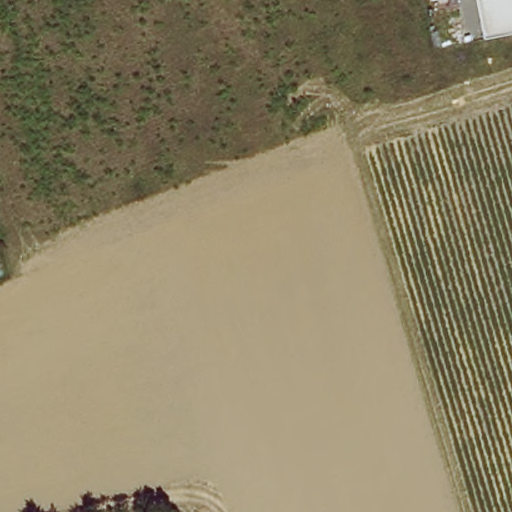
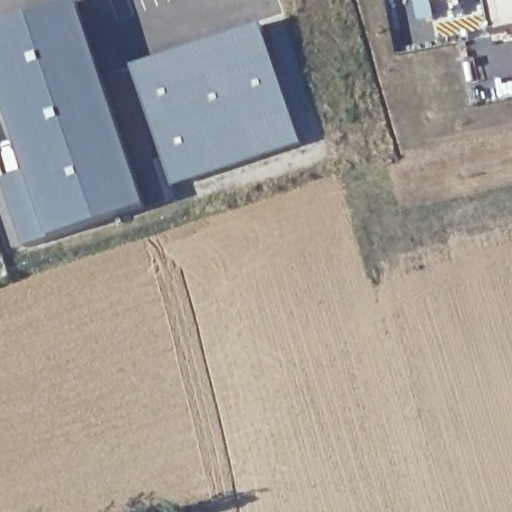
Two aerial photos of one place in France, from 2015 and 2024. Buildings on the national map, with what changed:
unchanged [(492,41),(484,0),(512,0),(512,38),(492,41)]
new [(27,250),(3,182),(27,171),(0,92),(0,30),(79,3),(148,209),(52,242),(27,250)]
new [(174,190),(133,70),(262,26),(302,146),(174,190)]

